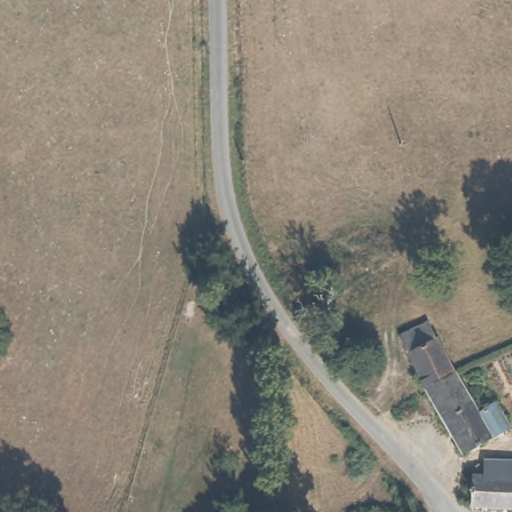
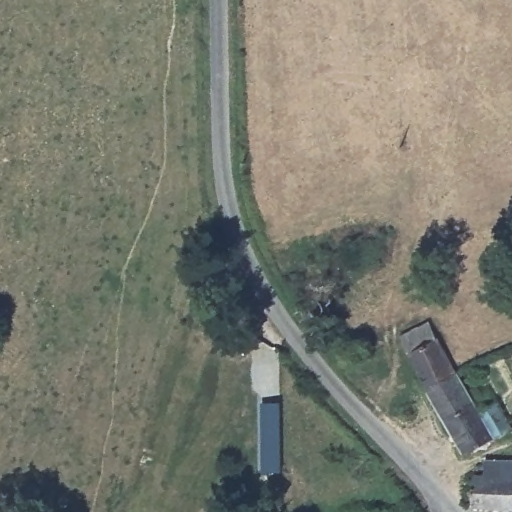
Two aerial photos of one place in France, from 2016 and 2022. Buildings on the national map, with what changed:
unchanged [(428,384),(427,384),(401,335),(429,320),(455,370),(428,384)]
unchanged [(339,366),(338,366),(334,362),(332,350),(349,347),(352,362),(339,366)]
unchanged [(473,402),(481,398),(487,398),(493,408),(498,405),(511,430),(465,454),(427,384),(428,384),(455,370),(473,402)]
new [(260,471),(259,400),(279,400),(280,472),(260,471)]
unchanged [(512,456),(512,511),(469,509),(469,472),(486,474),(488,456),(512,456)]

